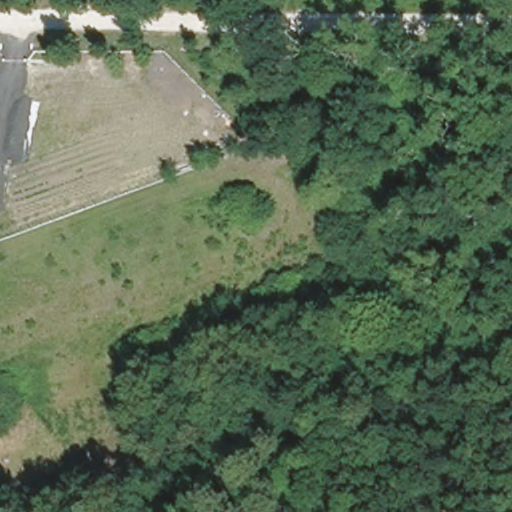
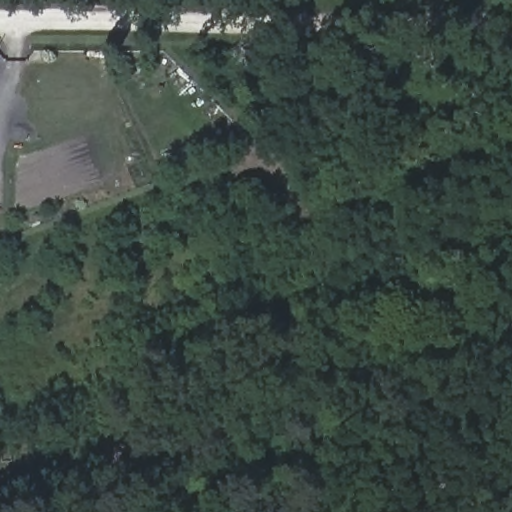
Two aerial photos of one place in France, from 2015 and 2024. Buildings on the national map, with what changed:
unchanged [(28,52),(55,55),(54,70),(26,71),(28,52)]

